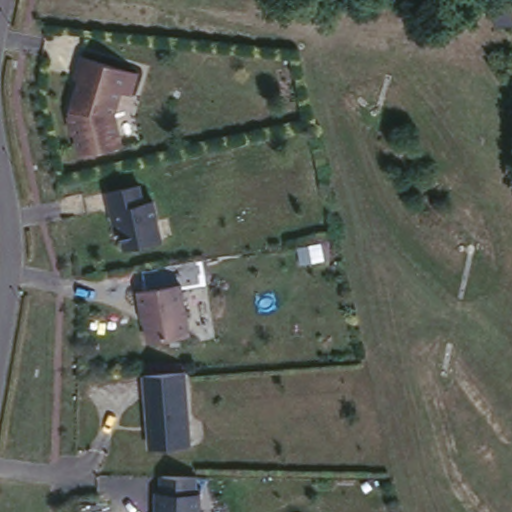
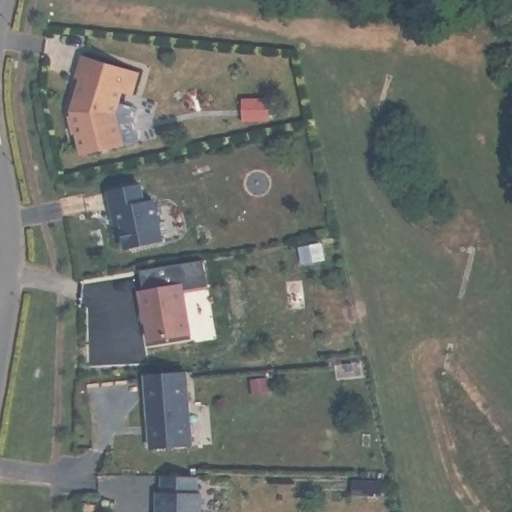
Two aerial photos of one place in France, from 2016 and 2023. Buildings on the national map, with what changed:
unchanged [(496,27),(493,9),(511,6),(512,17),(512,24),(496,27)]
unchanged [(77,112),(76,108),(86,76),(82,74),(87,52),(142,69),(136,90),(126,87),(120,109),(127,142),(86,152),(81,130),(76,132),(72,114),(77,112)]
unchanged [(118,206),(113,186),(145,180),(150,200),(160,197),(169,237),(132,244),(127,219),(122,220),(118,206)]
unchanged [(141,288),(183,282),(191,331),(151,337),(147,320),(146,321),(144,308),(141,288)]
unchanged [(190,368),(196,442),(156,445),(150,372),(190,368)]
unchanged [(157,485),(162,485),(162,468),(197,468),(197,486),(201,486),(201,512),(157,512),(157,503),(157,485)]

